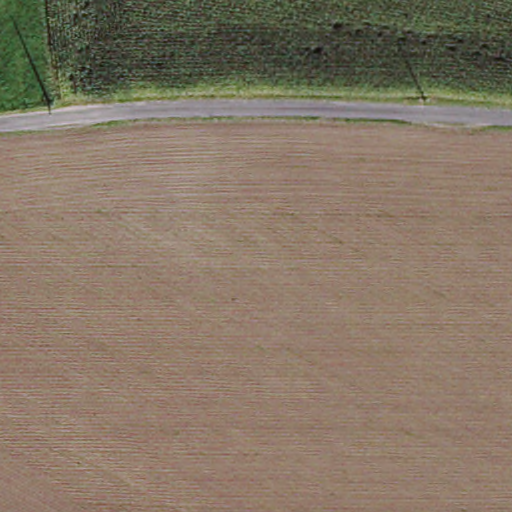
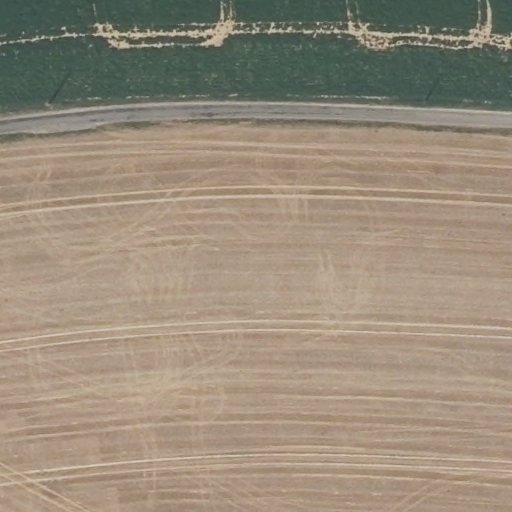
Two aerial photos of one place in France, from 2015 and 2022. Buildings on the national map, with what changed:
[]

